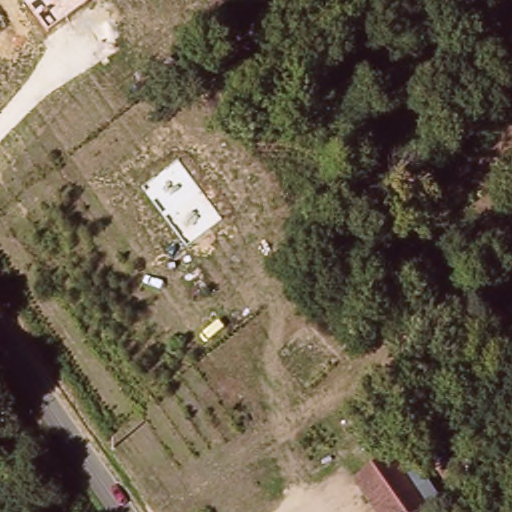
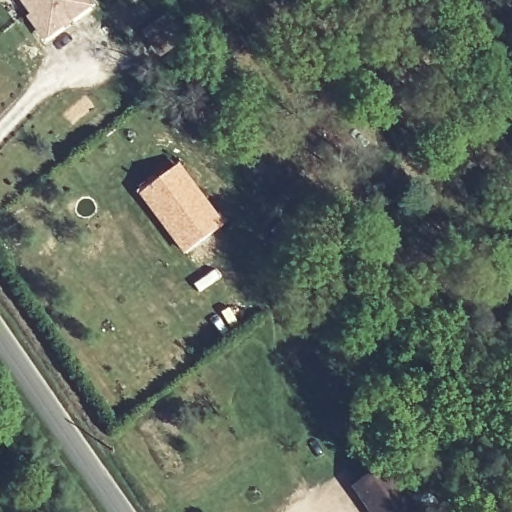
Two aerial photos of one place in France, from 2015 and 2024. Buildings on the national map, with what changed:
unchanged [(94,6),(48,39),(44,42),(27,18),(30,15),(19,0),(89,0),(94,6)]
new [(185,255),(140,195),(180,164),(225,224),(185,255)]
unchanged [(391,465),(424,512),(370,512),(354,488),(391,465)]

